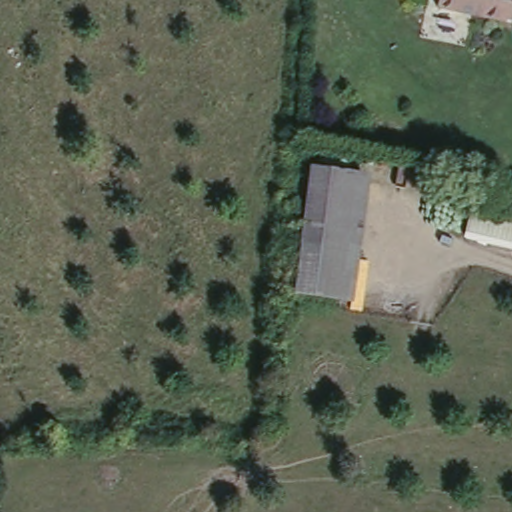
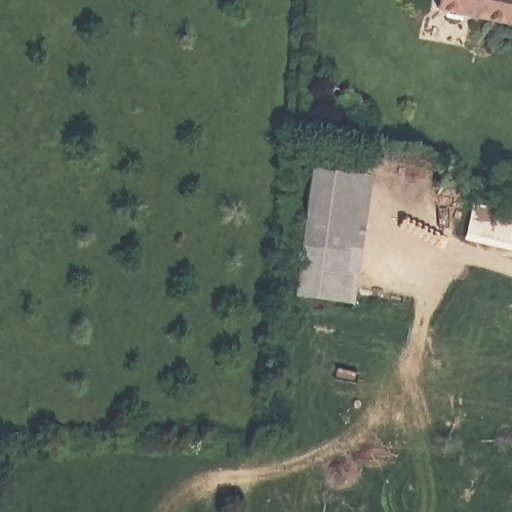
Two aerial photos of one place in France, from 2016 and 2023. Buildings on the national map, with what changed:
unchanged [(512,22),(440,12),(441,0),(512,0),(512,22)]
unchanged [(375,175),(359,302),(296,295),(313,169),(375,175)]
unchanged [(512,209),(512,244),(467,233),(473,200),(512,209)]

